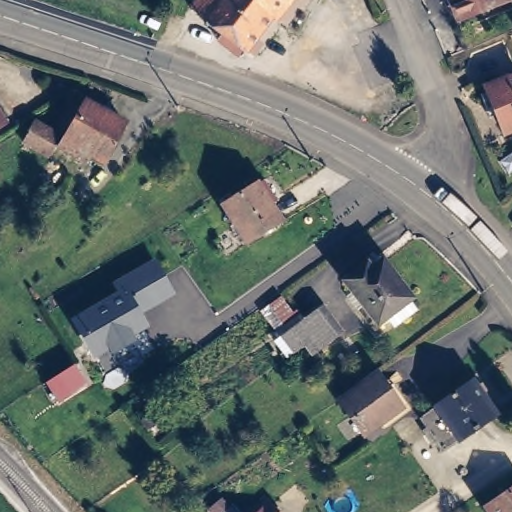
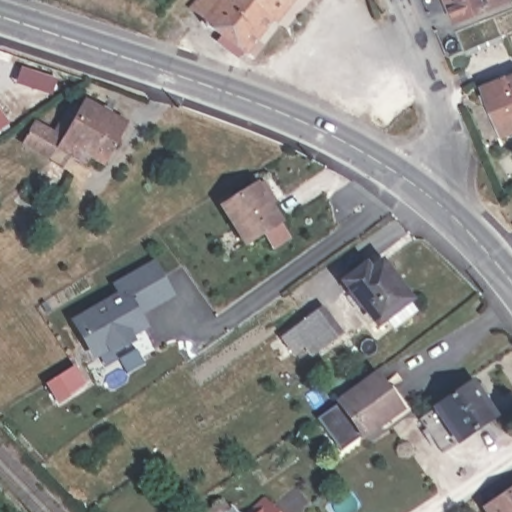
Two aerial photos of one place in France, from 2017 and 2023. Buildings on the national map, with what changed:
unchanged [(210,22),(211,20),(197,8),(203,0),(291,0),(250,53),(210,22)]
unchanged [(466,20),(459,0),(502,0),(504,5),(466,20)]
unchanged [(512,79),(512,121),(497,85),(512,79)]
unchanged [(60,131),(75,103),(86,109),(90,102),(129,123),(109,162),(94,154),(90,160),(66,146),(70,139),(65,136),(54,156),(30,143),(42,122),(60,131)]
unchanged [(0,127),(0,113),(7,123),(0,127)]
unchanged [(260,181),(274,200),(267,204),(279,222),(245,243),(222,207),(260,181)]
unchanged [(365,251),(369,257),(382,247),(410,284),(409,286),(417,297),(394,312),(387,302),(375,310),(345,267),(365,251)]
unchanged [(172,294),(140,311),(148,327),(134,335),(137,341),(110,356),(105,351),(92,357),(67,316),(115,291),(111,283),(155,259),(172,294)]
unchanged [(324,342),(302,359),(285,336),(305,319),(324,342)]
unchanged [(77,372),(88,390),(62,406),(50,389),(77,372)]
unchanged [(486,372),(509,406),(458,443),(435,408),(486,372)]
unchanged [(400,414),(364,440),(340,406),(376,380),(400,414)]
unchanged [(487,506),(512,489),(512,512),(491,512),(487,506)]
unchanged [(265,502),(272,510),(277,506),(281,512),(255,512),(265,502)]
unchanged [(233,504),(240,512),(224,512),(233,504)]

